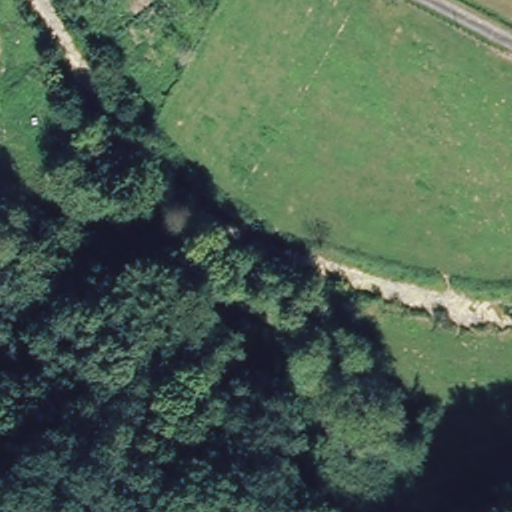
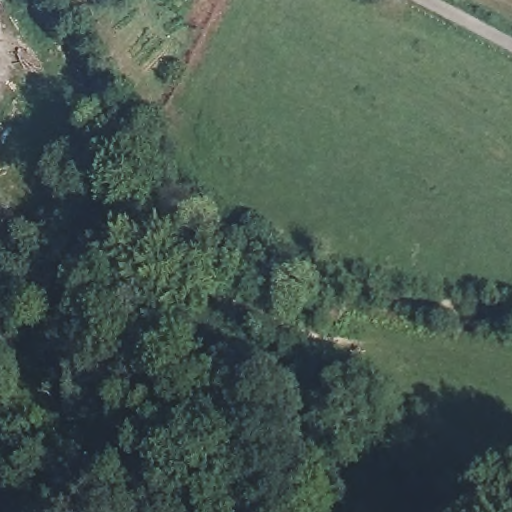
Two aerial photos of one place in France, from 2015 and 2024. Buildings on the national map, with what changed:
[]

